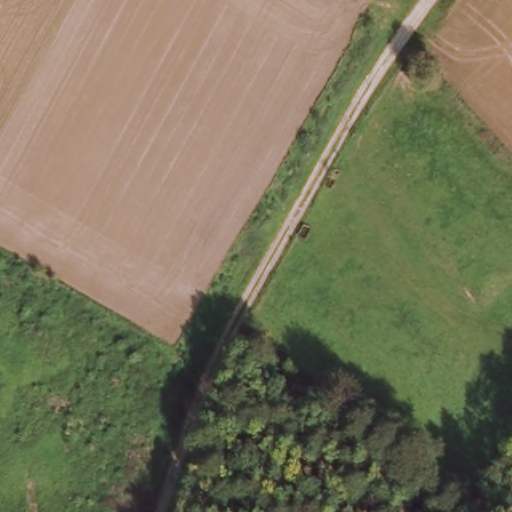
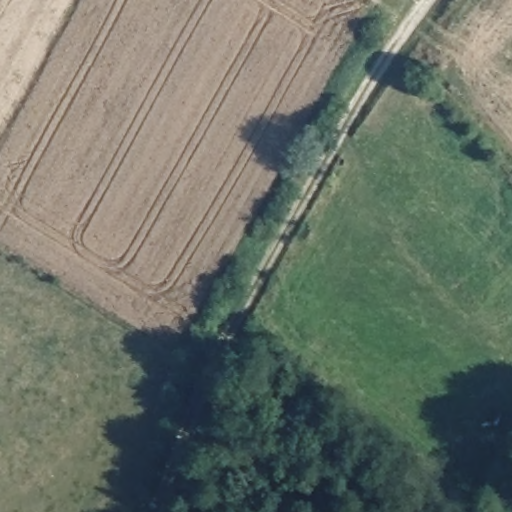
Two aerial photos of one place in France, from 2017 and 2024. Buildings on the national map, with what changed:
unchanged [(280,399),(293,382),(312,398),(299,412),(280,399)]

